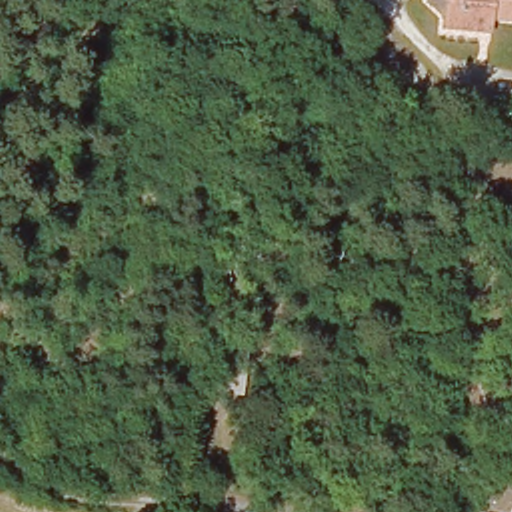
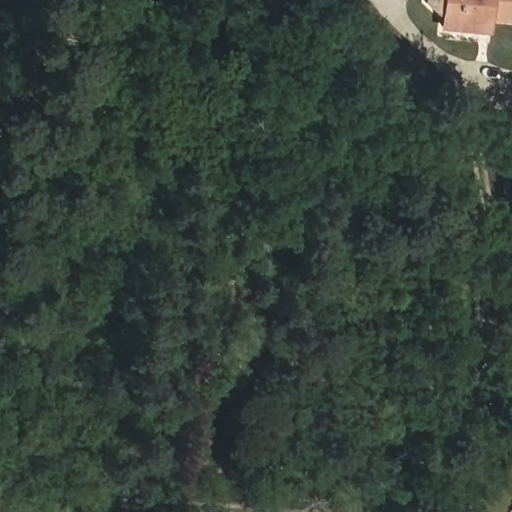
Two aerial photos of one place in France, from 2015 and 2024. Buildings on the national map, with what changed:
unchanged [(442,21),(440,11),(428,0),(512,0),(512,10),(488,9),(484,23),(474,23),(442,21)]
unchanged [(204,382),(211,343),(230,347),(224,385),(204,382)]

